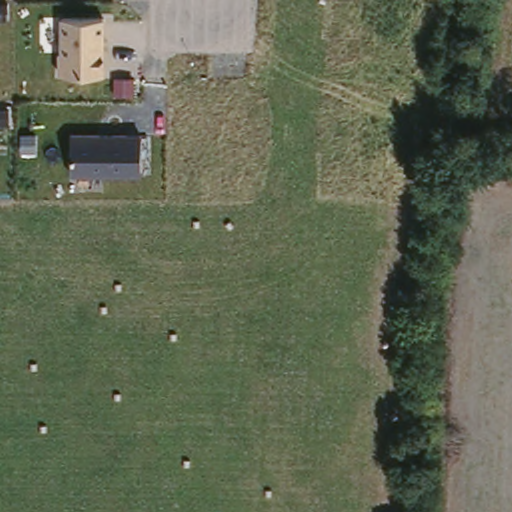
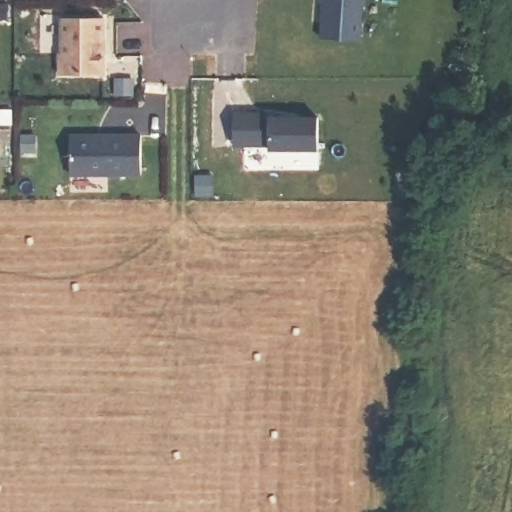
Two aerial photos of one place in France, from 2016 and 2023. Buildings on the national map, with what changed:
new [(360,0),(360,9),(357,11),(355,41),(350,46),(316,44),(319,0),(360,0)]
unchanged [(61,19),(105,20),(104,75),(60,75),(61,19)]
new [(266,123),(314,122),(314,155),(267,155),(266,150),(245,150),(230,150),(230,119),(245,119),(266,119),(266,123)]
unchanged [(71,134),(141,134),(141,175),(72,175),(71,134)]

